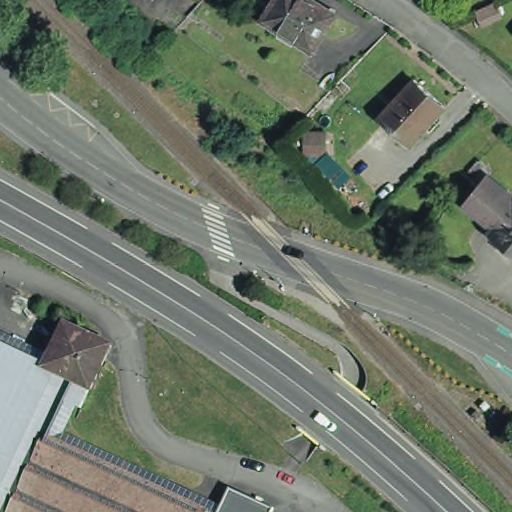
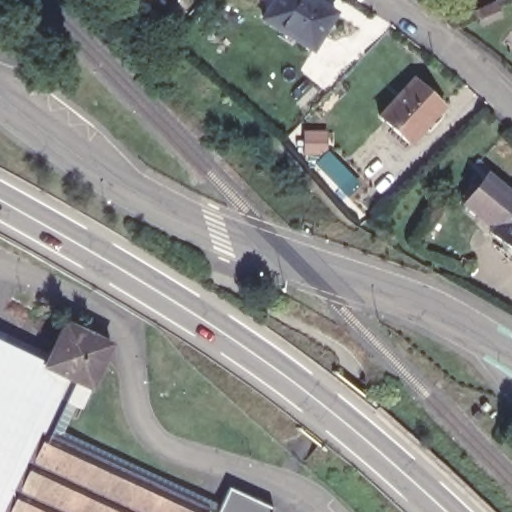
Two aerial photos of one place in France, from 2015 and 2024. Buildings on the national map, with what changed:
unchanged [(260,22),(274,0),(304,0),(332,18),(309,53),(260,22)]
unchanged [(500,16),(481,26),(475,16),(472,11),(492,2),(495,6),(500,16)]
unchanged [(411,80),(440,106),(407,144),(377,118),(411,80)]
unchanged [(462,210),(480,188),(467,178),(475,165),(482,170),(487,179),(512,200),(512,209),(492,233),(462,210)]
unchanged [(489,239),(492,233),(512,209),(512,257),(489,239)]
unchanged [(62,324),(84,334),(108,346),(103,357),(79,409),(60,401),(71,377),(44,364),(62,324)]
unchanged [(9,512),(0,512),(0,344),(44,364),(71,377),(60,401),(44,436),(9,512)]
unchanged [(205,510),(204,512),(9,512),(44,436),(205,510)]
unchanged [(225,486),(269,507),(266,512),(213,512),(225,486)]
unchanged [(209,512),(204,512),(205,510),(209,512)]

